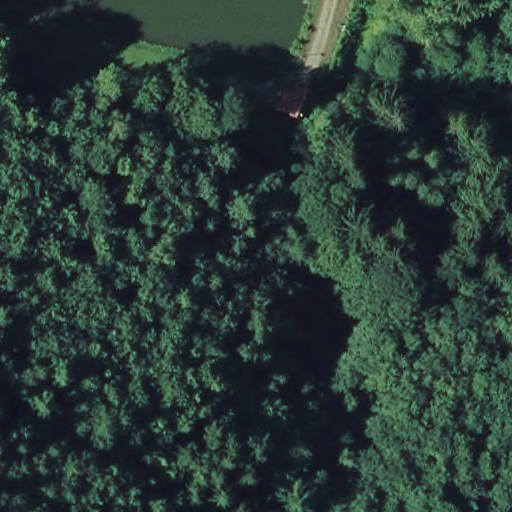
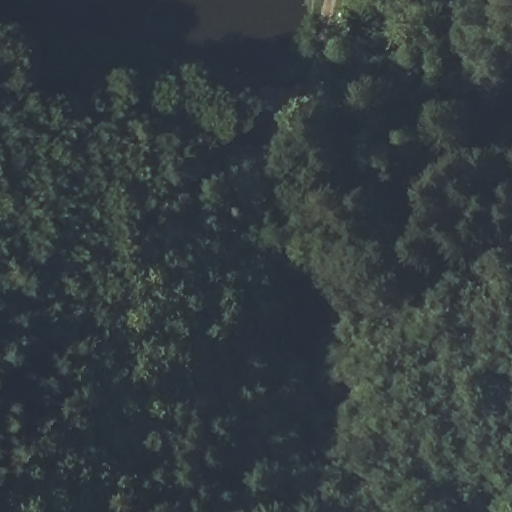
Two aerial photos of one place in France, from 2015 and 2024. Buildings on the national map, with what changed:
unchanged [(292,86),(319,95),(312,122),(283,116),(292,86)]

